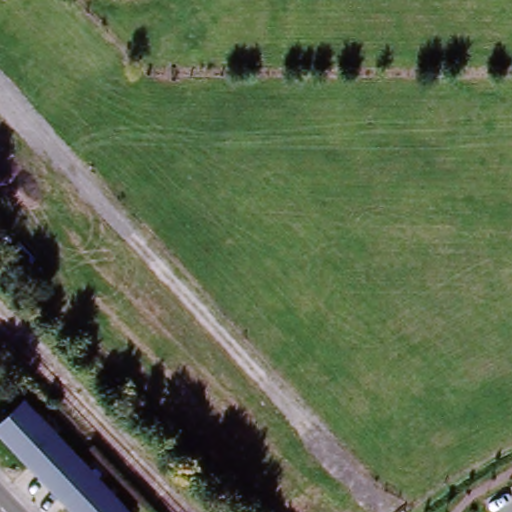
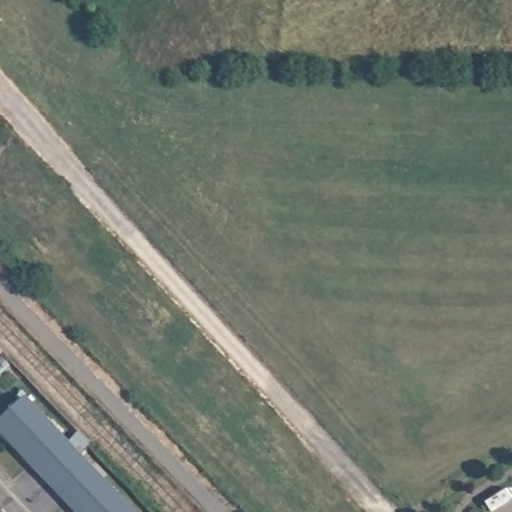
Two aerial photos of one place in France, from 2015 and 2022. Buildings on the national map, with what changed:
unchanged [(7,441),(0,432),(0,420),(23,398),(38,413),(33,418),(73,460),(52,482),(12,437),(7,441)]
unchanged [(115,505),(118,502),(129,512),(79,512),(52,482),(73,460),(115,505)]

